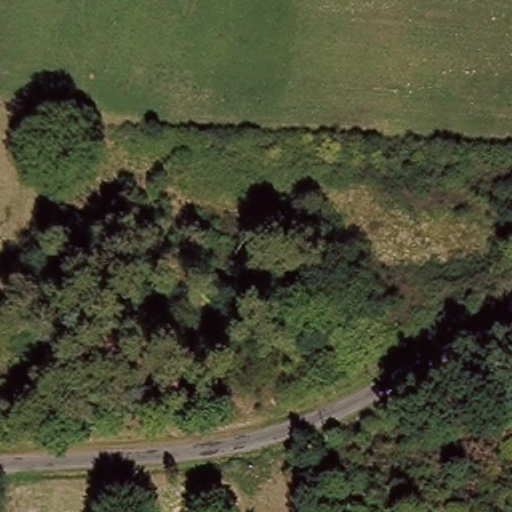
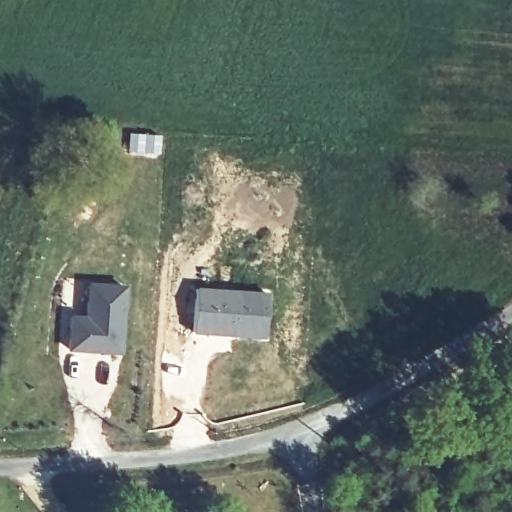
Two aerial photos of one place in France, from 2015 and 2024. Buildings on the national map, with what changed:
new [(71,315),(87,315),(88,281),(125,284),(121,352),(70,349),(71,315)]
new [(195,286),(266,291),(263,339),(191,333),(195,286)]

